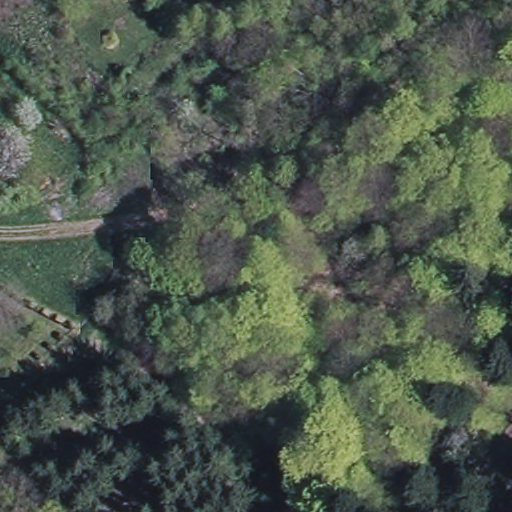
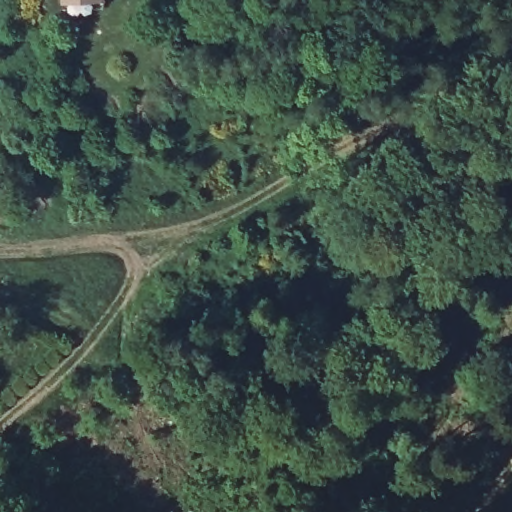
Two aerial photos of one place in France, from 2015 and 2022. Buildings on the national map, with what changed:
unchanged [(64,0),(104,0),(104,1),(65,1),(64,0)]

